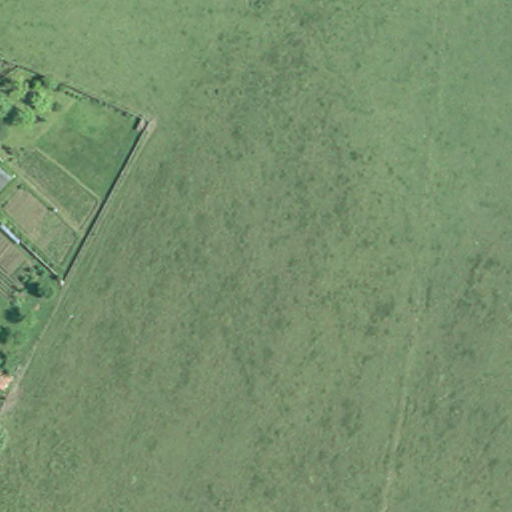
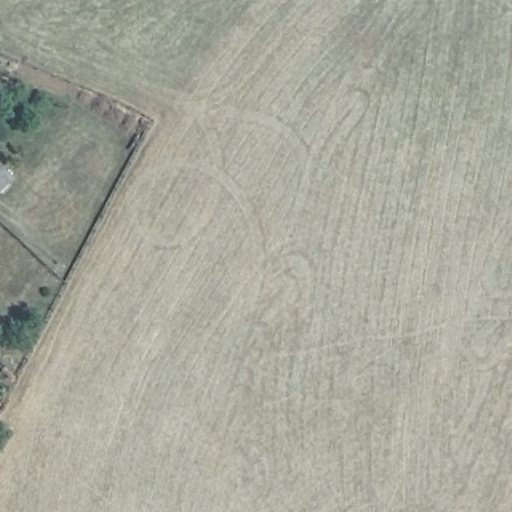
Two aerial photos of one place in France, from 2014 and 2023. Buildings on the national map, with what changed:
unchanged [(0,165),(17,181),(2,197),(0,195),(0,165)]

